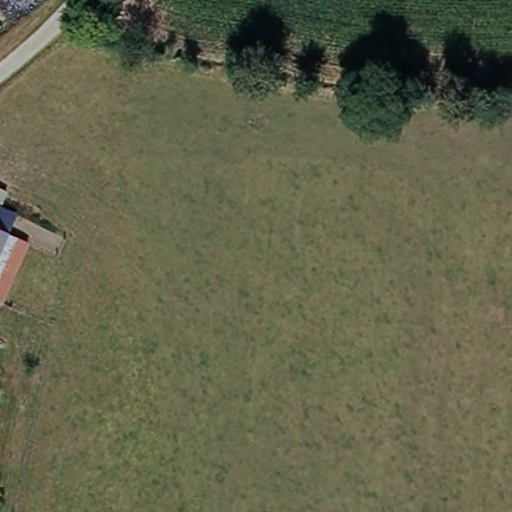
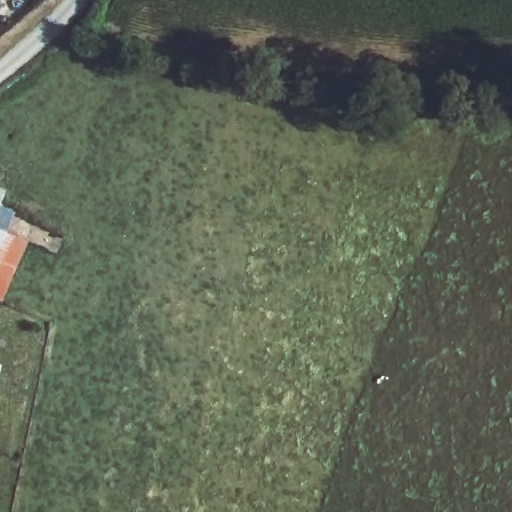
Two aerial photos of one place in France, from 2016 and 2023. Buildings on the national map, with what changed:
unchanged [(2,210),(17,216),(5,243),(23,250),(0,305),(0,184),(11,187),(2,210)]

